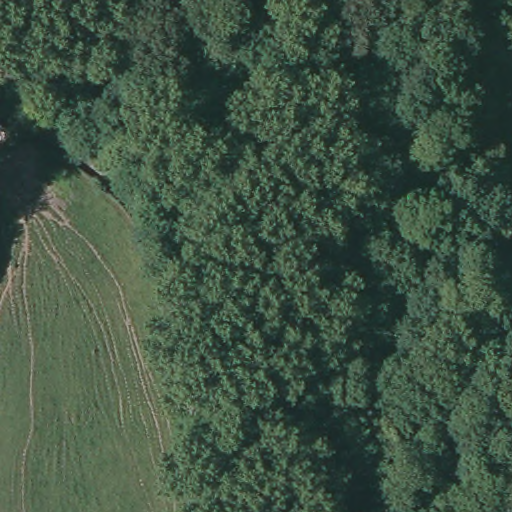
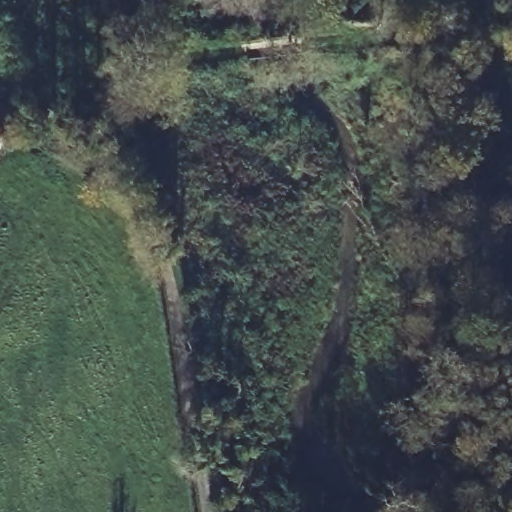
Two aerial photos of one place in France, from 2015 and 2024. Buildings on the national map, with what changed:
unchanged [(2,151),(0,149),(0,119),(16,131),(2,151)]

